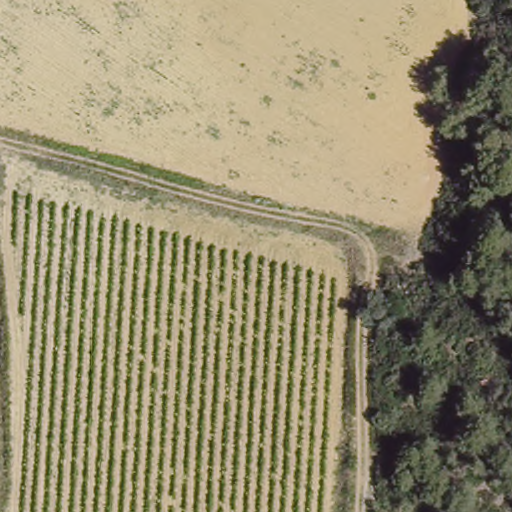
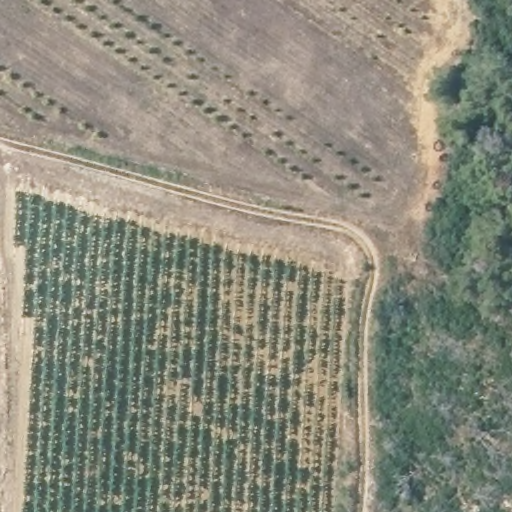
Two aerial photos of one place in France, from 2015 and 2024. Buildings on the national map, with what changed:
[]

